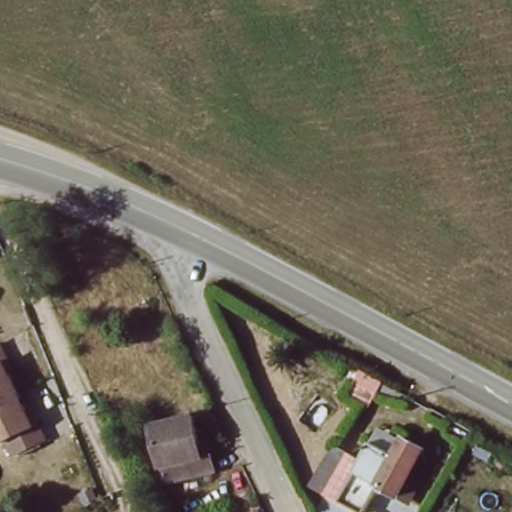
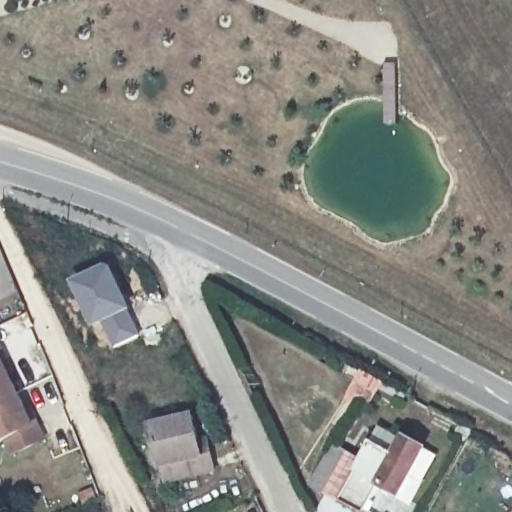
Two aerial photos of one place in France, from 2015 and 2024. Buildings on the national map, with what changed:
new [(110,347),(100,324),(91,328),(68,280),(110,261),(131,309),(141,335),(110,347)]
unchanged [(1,363),(0,364),(0,361),(1,363)]
unchanged [(26,429),(32,427),(40,444),(10,458),(1,443),(0,443),(0,373),(26,429)]
unchanged [(378,411),(354,401),(362,376),(388,387),(378,411)]
unchanged [(163,463),(151,421),(194,410),(200,435),(212,432),(217,448),(221,464),(175,477),(167,479),(163,463)]
unchanged [(336,443),(359,456),(371,438),(393,451),(405,434),(426,448),(413,469),(427,478),(415,497),(380,474),(357,506),(354,510),(310,481),(327,456),(336,443)]

